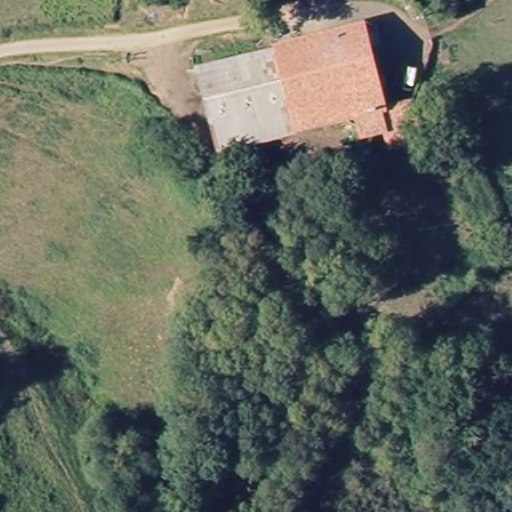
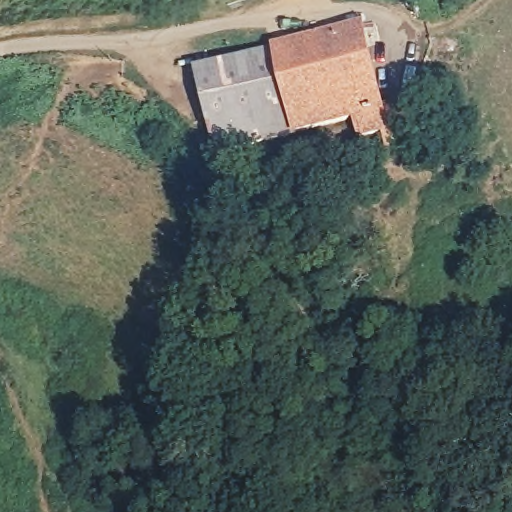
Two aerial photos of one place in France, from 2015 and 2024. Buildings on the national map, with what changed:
unchanged [(377,151),(370,121),(290,137),(288,130),(289,125),(275,46),(364,28),(382,116),(402,112),(407,144),(377,151)]
unchanged [(202,86),(198,66),(197,63),(208,61),(229,56),(275,46),(289,125),(288,130),(290,137),(215,150),(202,86)]

